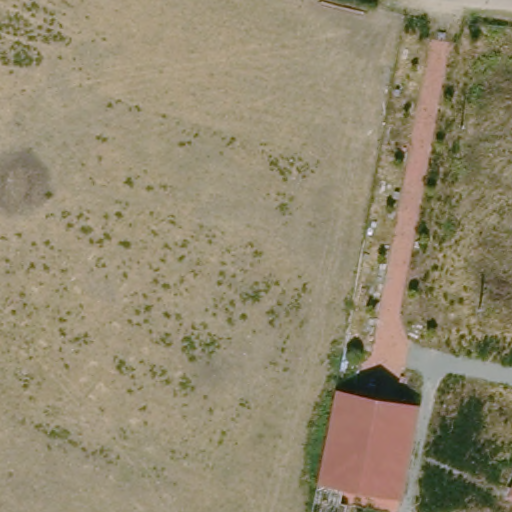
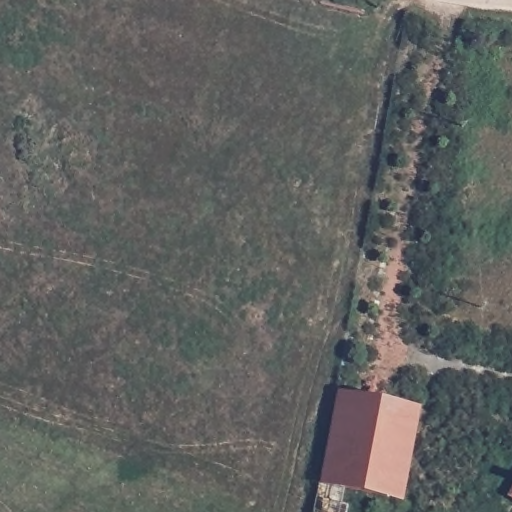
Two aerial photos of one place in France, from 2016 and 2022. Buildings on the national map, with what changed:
unchanged [(401,495),(321,480),(338,390),(418,405),(401,495)]
unchanged [(512,493),(512,499),(510,498),(512,493)]

